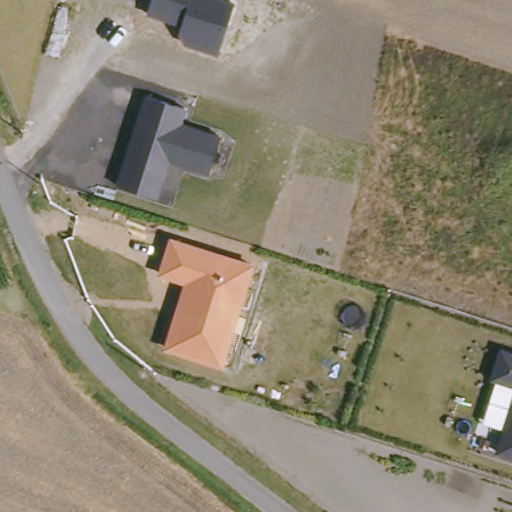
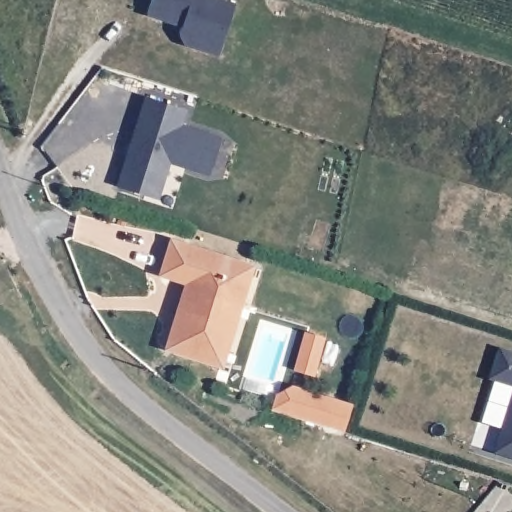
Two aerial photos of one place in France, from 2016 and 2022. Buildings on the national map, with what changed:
unchanged [(186,46),(181,35),(183,25),(148,16),(153,0),(226,0),(235,2),(219,55),(186,46)]
unchanged [(183,125),(222,136),(210,175),(169,164),(159,199),(116,186),(144,96),(187,110),(183,125)]
unchanged [(178,313),(182,301),(189,281),(161,272),(172,239),(216,253),(231,258),(256,265),(245,301),(232,338),(224,365),(174,349),(167,347),(173,330),(178,313)]
unchanged [(502,353),(512,355),(512,390),(492,384),(502,353)]
new [(276,394),(292,385),(353,404),(345,431),(272,409),(276,394)]
unchanged [(512,462),(498,459),(512,414),(512,462)]

